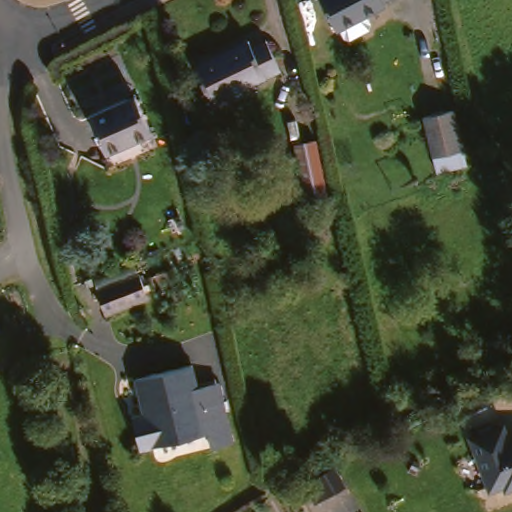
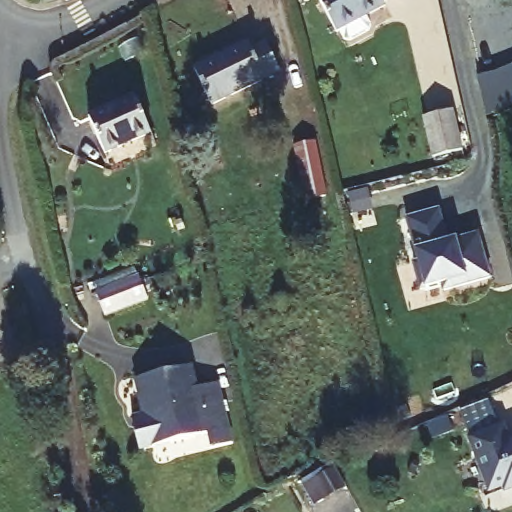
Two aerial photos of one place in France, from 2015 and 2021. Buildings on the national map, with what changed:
unchanged [(375,5),(377,10),(328,35),(312,2),(316,0),(385,0),(375,5)]
unchanged [(205,108),(187,72),(244,47),(245,53),(260,46),(272,77),(205,108)]
new [(512,56),(512,111),(490,122),(476,65),(512,56)]
unchanged [(103,156),(87,121),(131,102),(147,136),(103,156)]
unchanged [(457,149),(430,154),(427,141),(422,117),(449,111),(453,129),(457,149)]
unchanged [(300,203),(290,152),(308,146),(320,197),(300,203)]
new [(446,242),(479,235),(490,278),(444,290),(442,284),(426,288),(421,290),(414,263),(419,261),(416,251),(407,218),(438,209),(446,242)]
unchanged [(104,322),(93,298),(132,278),(142,302),(104,322)]
unchanged [(209,451),(205,437),(137,452),(132,428),(144,426),(134,382),(190,369),(195,391),(215,386),(220,405),(230,446),(209,451)]
unchanged [(500,427),(506,447),(512,445),(512,491),(504,495),(502,490),(488,495),(467,439),(500,427)]
unchanged [(308,487),(319,481),(335,471),(335,472),(336,473),(337,473),(338,474),(340,474),(341,473),(349,488),(330,500),(319,506),(308,487)]

